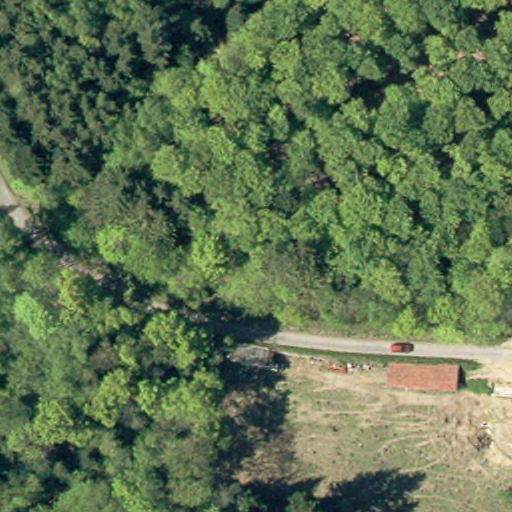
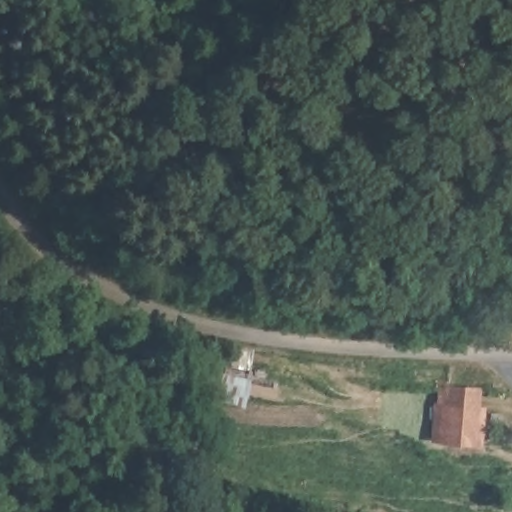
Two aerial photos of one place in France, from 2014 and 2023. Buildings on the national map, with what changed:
new [(487,405),(483,443),(434,440),(436,400),(449,400),(450,383),(482,386),(482,405),(487,405)]

